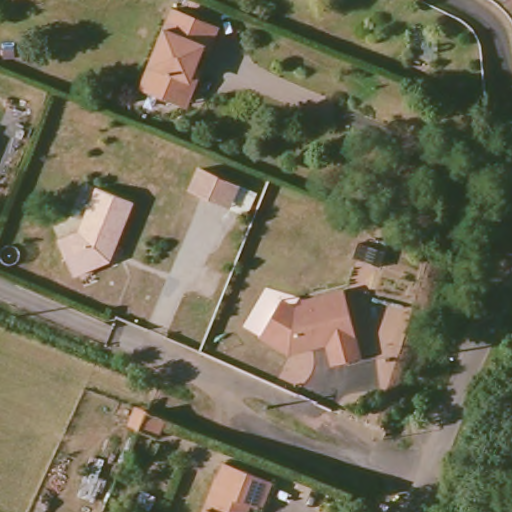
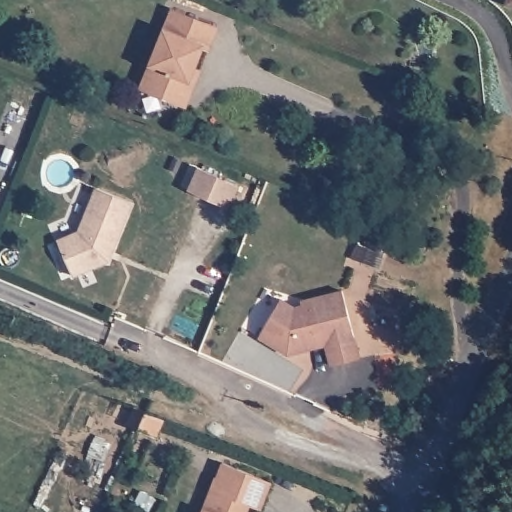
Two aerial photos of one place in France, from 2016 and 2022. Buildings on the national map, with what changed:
unchanged [(496,0),(512,0),(512,12),(505,10),(507,4),(496,0)]
unchanged [(223,27),(215,49),(210,46),(200,70),(205,72),(190,105),(146,87),(178,10),(223,27)]
unchanged [(61,243),(81,234),(100,190),(106,192),(134,205),(115,250),(111,249),(106,261),(105,263),(102,264),(79,276),(76,271),(61,243)]
unchanged [(345,287),(362,355),(332,362),(328,341),(292,351),(290,351),(287,350),(285,350),(260,335),(276,305),(281,297),(297,305),(303,302),(302,298),(345,287)]
unchanged [(147,413),(166,421),(158,442),(138,435),(147,413)]
unchanged [(225,460),(272,478),(261,507),(249,503),(246,512),(204,512),(225,460)]

